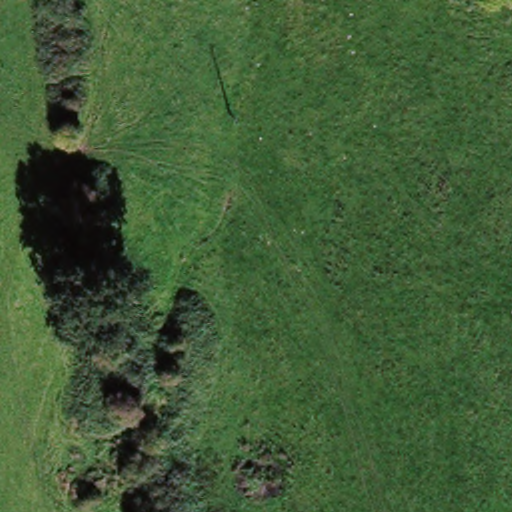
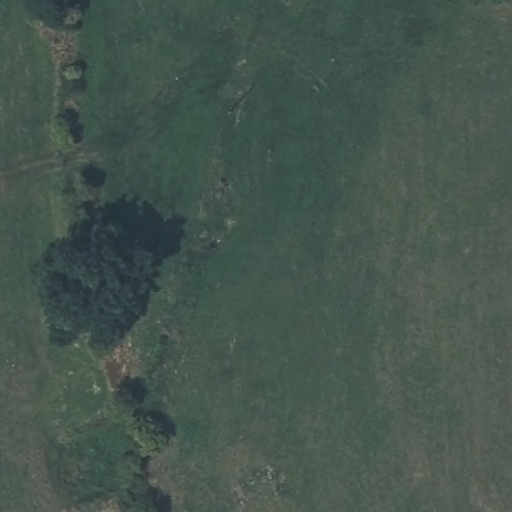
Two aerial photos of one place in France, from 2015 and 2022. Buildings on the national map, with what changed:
[]

